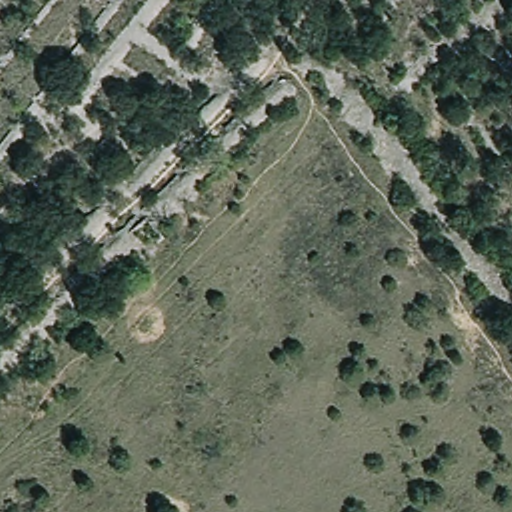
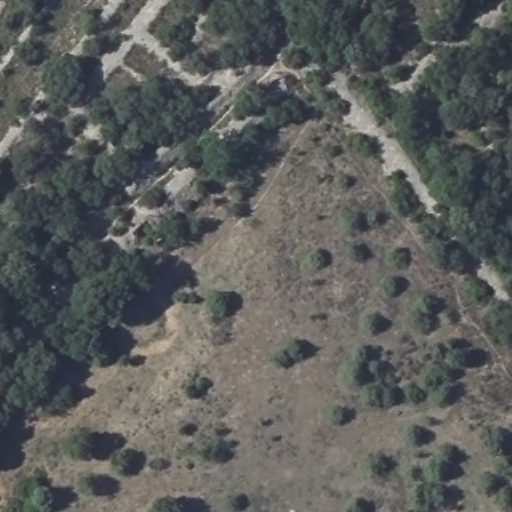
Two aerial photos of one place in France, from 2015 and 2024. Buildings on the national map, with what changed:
unchanged [(106,136),(119,150),(103,166),(90,151),(106,136)]

